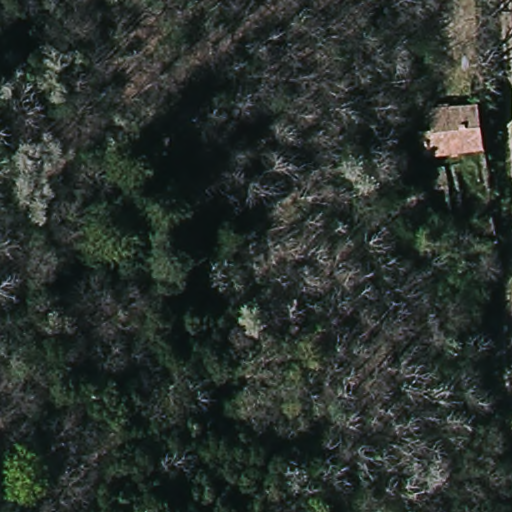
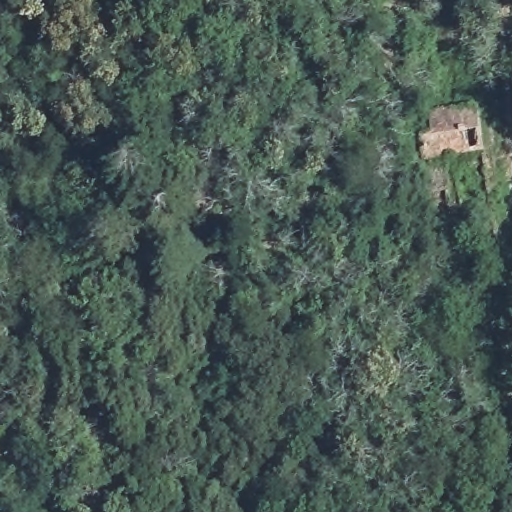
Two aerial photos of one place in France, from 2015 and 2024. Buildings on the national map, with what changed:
unchanged [(422,161),(419,134),(430,134),(430,110),(478,105),(484,152),(422,161)]

